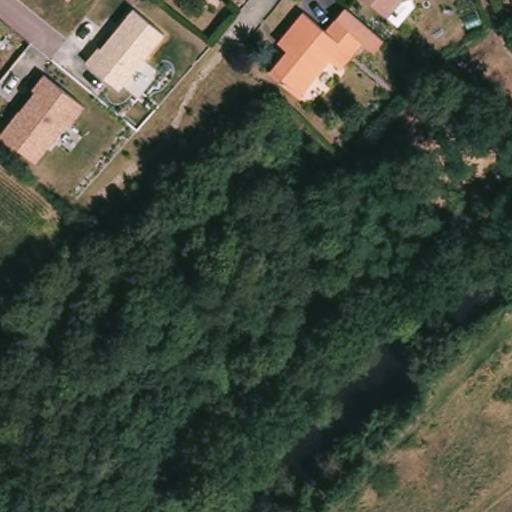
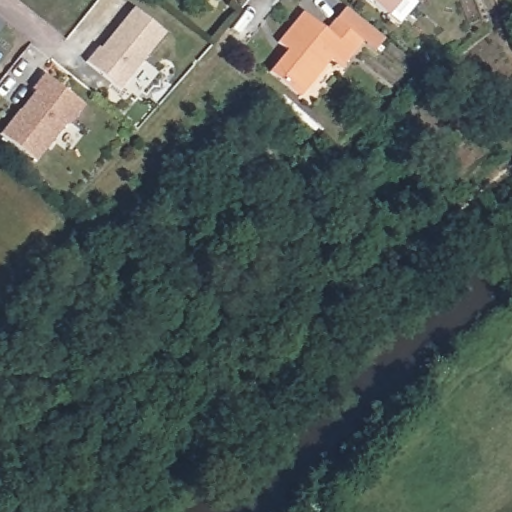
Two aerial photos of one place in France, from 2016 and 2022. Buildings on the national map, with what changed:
unchanged [(403,1),(388,15),(370,0),(405,0),(403,1)]
unchanged [(280,42),(306,12),(328,31),(348,7),(384,36),(373,50),(365,42),(343,69),(333,61),(304,97),(272,72),(290,50),(280,42)]
unchanged [(118,92),(82,63),(96,47),(100,49),(130,8),(164,35),(118,92)]
unchanged [(70,125),(62,127),(34,162),(0,136),(0,132),(32,91),(29,89),(42,74),(85,107),(70,125)]

